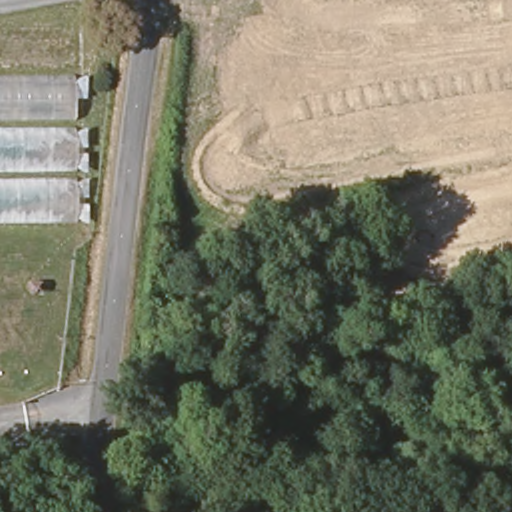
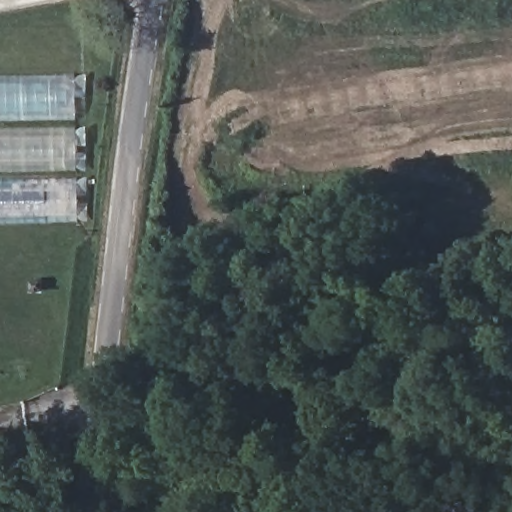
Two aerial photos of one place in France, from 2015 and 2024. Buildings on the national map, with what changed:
unchanged [(74,219),(0,221),(0,75),(71,72),(74,219)]

